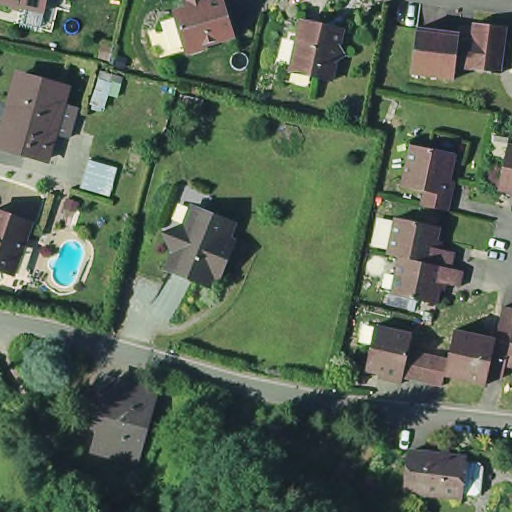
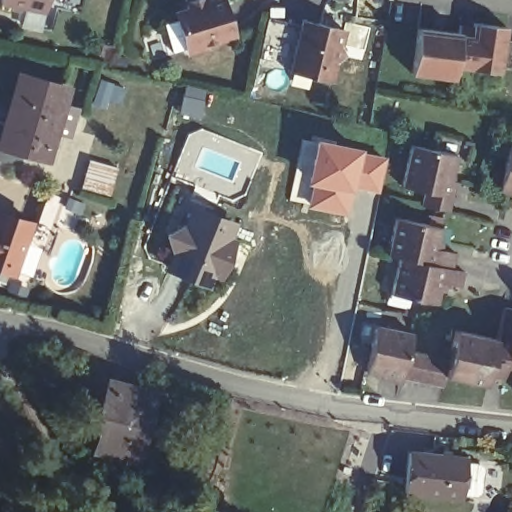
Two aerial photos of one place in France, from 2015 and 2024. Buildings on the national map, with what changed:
unchanged [(0,9),(0,6),(1,0),(47,0),(43,19),(0,9)]
unchanged [(197,47),(188,50),(181,46),(171,10),(186,6),(184,0),(201,0),(201,1),(203,0),(220,0),(229,32),(200,41),(197,47)]
unchanged [(293,69),(303,23),(344,33),(340,50),(346,59),(336,63),(331,84),(311,79),(291,74),(293,69)]
unchanged [(507,66),(499,65),(498,75),(452,69),(451,81),(409,76),(415,30),(455,35),(456,29),(470,30),(471,24),(504,29),(502,42),(509,44),(512,44),(512,66),(507,66)]
unchanged [(66,138),(51,134),(43,161),(4,150),(12,120),(5,118),(17,77),(64,90),(60,105),(75,110),(66,138)]
new [(365,149),(364,153),(388,157),(381,195),(356,190),(351,219),(307,209),(311,186),(305,185),(314,139),(365,149)]
unchanged [(503,185),(504,182),(510,155),(512,145),(512,187),(503,185)]
unchanged [(416,150),(445,157),(460,161),(454,186),(408,180),(414,153),(416,150)]
unchanged [(83,184),(91,155),(120,163),(113,192),(83,184)]
unchanged [(454,186),(451,200),(454,201),(450,218),(424,212),(428,195),(405,190),(408,180),(454,186)]
unchanged [(73,194),(83,197),(80,206),(69,202),(72,194),(73,194)]
unchanged [(226,262),(221,275),(216,272),(211,280),(171,264),(176,249),(168,229),(188,222),(196,204),(206,209),(236,220),(231,235),(236,237),(226,262)]
unchanged [(18,275),(0,269),(0,212),(35,224),(18,275)]
unchanged [(433,254),(451,258),(448,273),(465,277),(461,294),(444,289),(438,310),(392,298),(399,263),(384,259),(389,236),(393,222),(438,232),(436,242),(433,254)]
unchanged [(415,336),(412,350),(451,359),(458,331),(499,340),(508,306),(512,306),(512,367),(509,367),(506,377),(492,374),(488,388),(447,377),(444,388),(406,378),(404,386),(387,381),(388,377),(366,372),(378,326),(415,336)]
unchanged [(156,388),(138,452),(98,441),(107,405),(102,402),(110,375),(156,388)]
unchanged [(482,464),(482,488),(478,492),(464,492),(464,496),(404,493),(405,455),(465,457),(464,460),(478,460),(482,464)]

